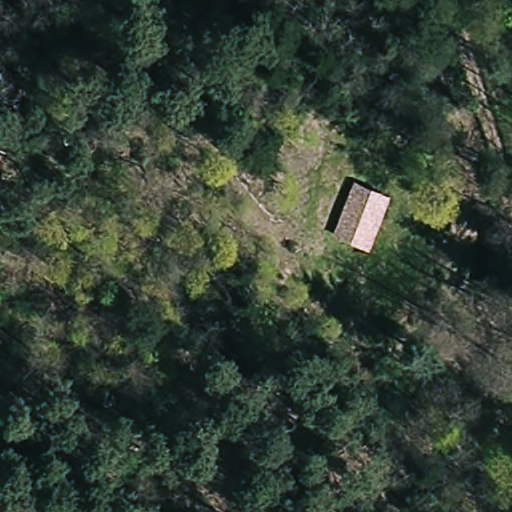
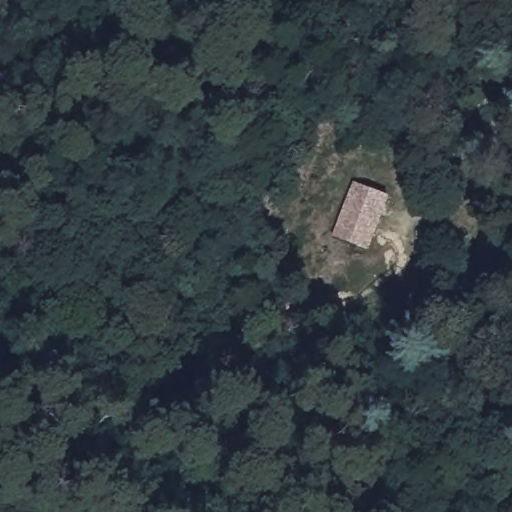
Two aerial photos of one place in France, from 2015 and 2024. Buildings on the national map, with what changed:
unchanged [(370,251),(336,237),(358,182),(392,196),(370,251)]

